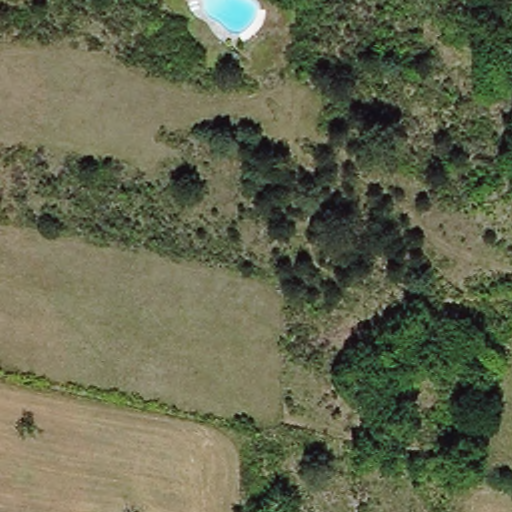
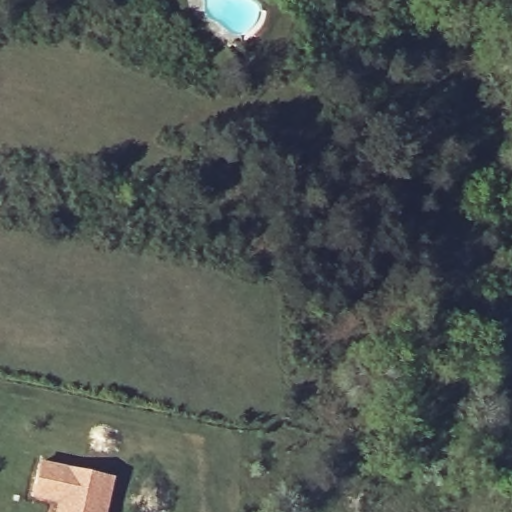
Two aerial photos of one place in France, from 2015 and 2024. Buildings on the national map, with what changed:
new [(63,498),(37,492),(44,460),(115,476),(108,503),(107,512),(60,512),(63,498)]

